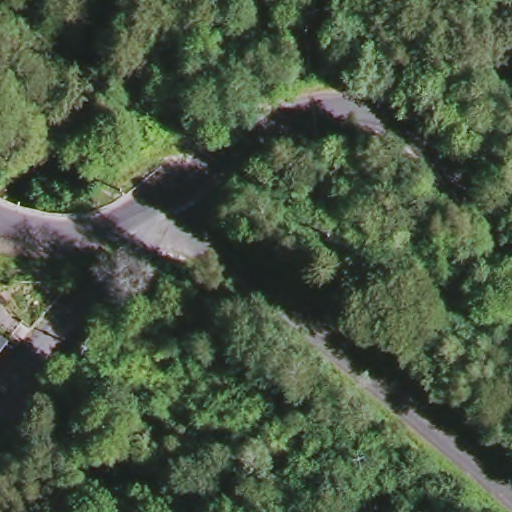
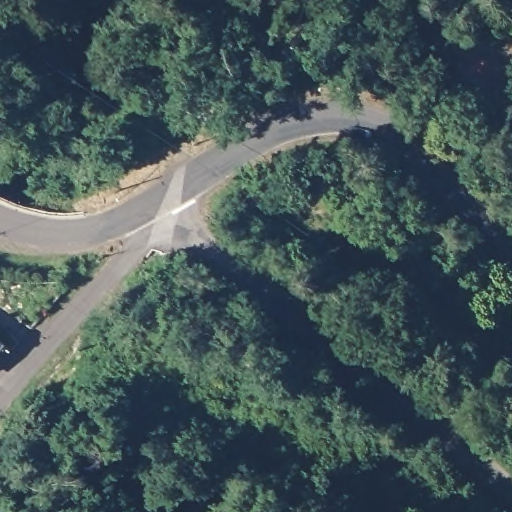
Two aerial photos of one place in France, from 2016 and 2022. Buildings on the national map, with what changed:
unchanged [(6,340),(0,348),(0,335),(6,340)]

